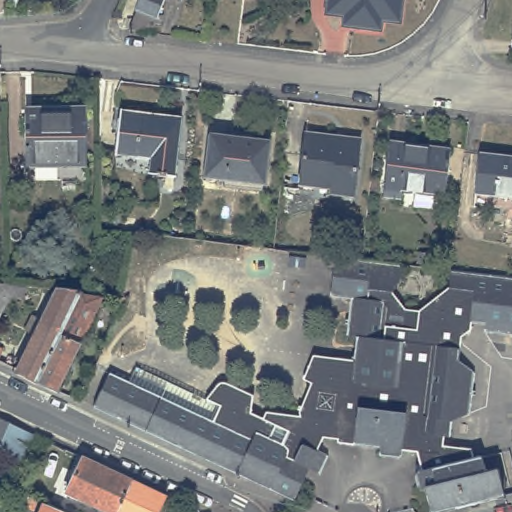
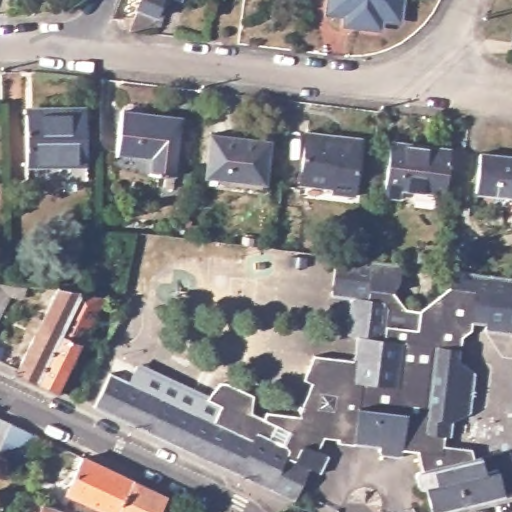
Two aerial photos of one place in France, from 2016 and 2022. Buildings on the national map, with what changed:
unchanged [(129,30),(140,0),(164,0),(153,27),(129,30)]
unchanged [(180,0),(180,1),(179,0),(180,0)]
unchanged [(350,15),(332,13),(333,0),(407,0),(404,21),(385,19),(384,29),(348,25),(350,15)]
unchanged [(183,8),(187,3),(202,2),(201,7),(182,16),(183,8)]
unchanged [(26,113),(49,111),(49,109),(87,107),(88,162),(29,165),(26,113)]
unchanged [(156,170),(159,154),(122,149),(127,108),(187,116),(180,174),(156,170)]
unchanged [(306,186),(313,130),(367,136),(360,193),(306,186)]
unchanged [(206,178),(212,136),(271,143),(266,186),(206,178)]
unchanged [(387,199),(393,143),(453,151),(447,197),(406,192),(405,201),(387,199)]
unchanged [(485,155),(512,158),(512,199),(480,195),(485,155)]
unchanged [(423,490),(420,474),(425,472),(420,453),(407,451),(405,459),(382,456),(383,449),(341,444),(341,440),(327,438),(320,452),(331,458),(323,473),(313,469),(297,501),(95,408),(112,374),(132,383),(139,368),(209,401),(231,385),(262,398),(258,416),(272,421),(274,414),(293,417),(307,418),(305,415),(304,413),(318,385),(311,380),(318,363),(322,356),(361,361),(358,337),(355,332),(358,300),(338,297),(342,258),(367,261),(458,272),(512,278),(512,335),(492,333),(492,325),(478,323),(477,331),(467,341),(464,364),(481,374),(477,413),(457,422),(455,437),(450,436),(448,446),(476,449),(478,458),(486,458),(489,472),(501,470),(507,497),(443,512),(434,512),(428,490),(423,490)]
unchanged [(2,278),(25,281),(23,293),(8,291),(0,307),(0,277),(2,278)]
unchanged [(16,372),(57,290),(80,293),(37,382),(16,372)]
unchanged [(37,382),(80,293),(89,295),(102,296),(79,346),(57,391),(37,382)]
unchanged [(1,345),(0,347),(0,344),(1,345)]
unchanged [(13,423),(40,436),(27,461),(1,450),(1,451),(0,452),(0,417),(13,423)]
unchanged [(66,494),(82,458),(131,481),(117,512),(106,512),(66,494)]
unchanged [(131,481),(165,497),(157,512),(117,512),(131,481)]
unchanged [(35,511),(35,512),(26,512),(28,507),(32,496),(67,512),(38,512),(35,511)]

